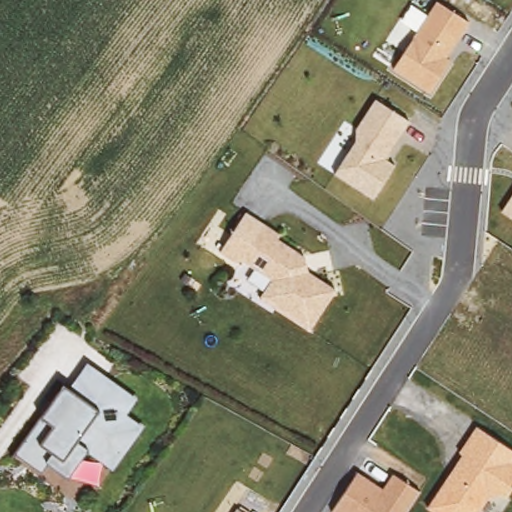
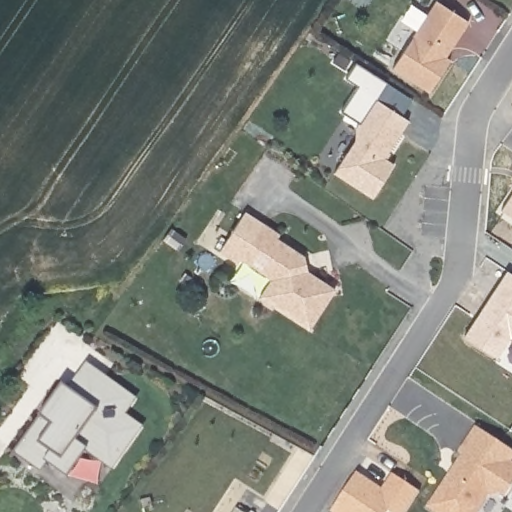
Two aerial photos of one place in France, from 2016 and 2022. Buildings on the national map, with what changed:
unchanged [(436,1),(469,23),(446,57),(451,61),(429,93),(391,70),(436,1)]
unchanged [(355,128),(373,101),(409,121),(384,160),(394,166),(372,200),(333,175),(355,140),(355,128)]
unchanged [(501,212),(512,194),(512,219),(501,212)]
unchanged [(278,240),(311,263),(307,273),(336,291),(308,329),(264,299),(261,297),(271,283),(272,281),(242,261),(237,265),(219,252),(245,216),(280,237),(278,240)]
new [(512,274),(512,340),(511,339),(498,357),(466,336),(507,271),(512,274)]
unchanged [(65,477),(46,464),(40,472),(13,454),(40,416),(62,385),(69,389),(87,363),(136,399),(125,415),(143,428),(112,471),(100,463),(97,486),(65,477)]
unchanged [(458,452),(476,425),(512,449),(512,488),(504,499),(494,495),(487,498),(478,512),(432,512),(425,508),(462,455),(458,452)]
unchanged [(418,493),(406,512),(332,512),(357,475),(383,489),(393,476),(418,493)]

